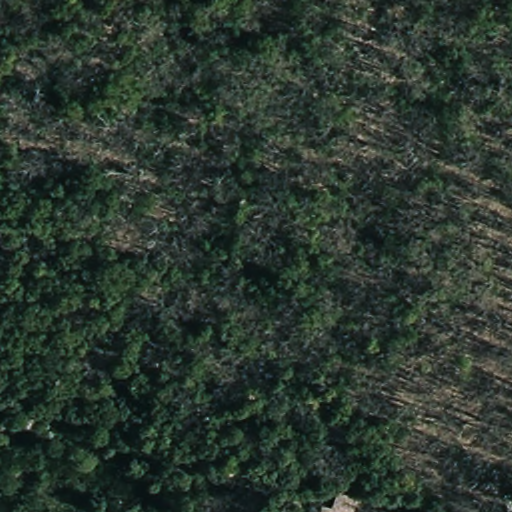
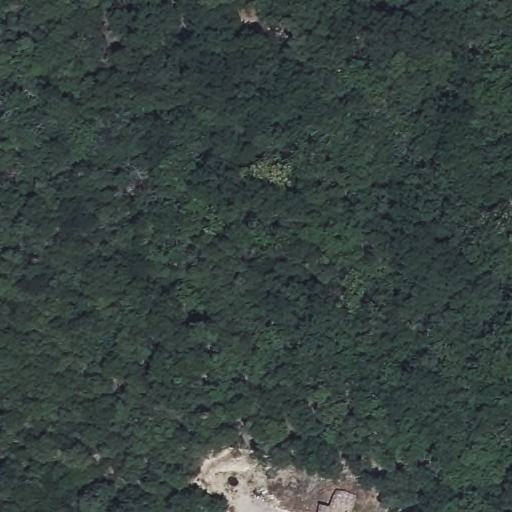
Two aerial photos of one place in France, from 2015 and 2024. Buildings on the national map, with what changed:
unchanged [(358,512),(322,512),(325,499),(326,494),(360,502),(358,512)]

